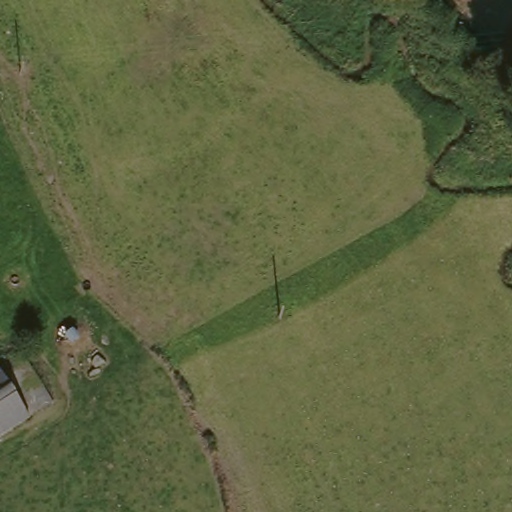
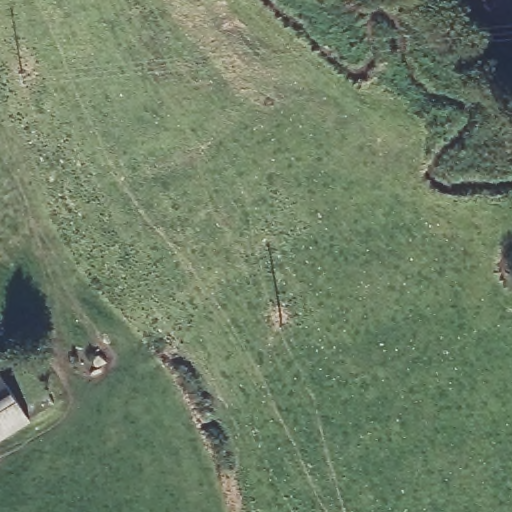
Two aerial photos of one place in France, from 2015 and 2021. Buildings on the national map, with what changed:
unchanged [(46,416),(0,439),(0,372),(19,362),(46,416)]

